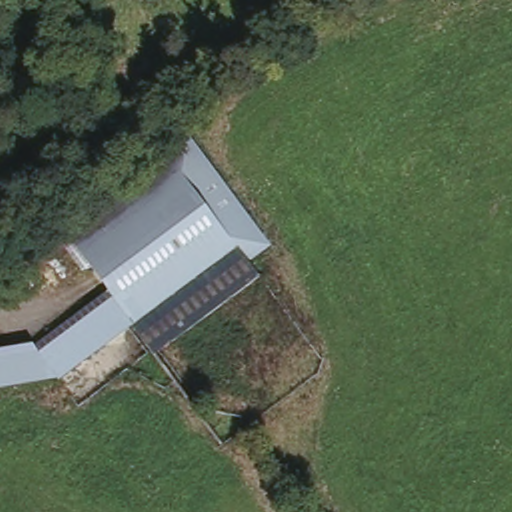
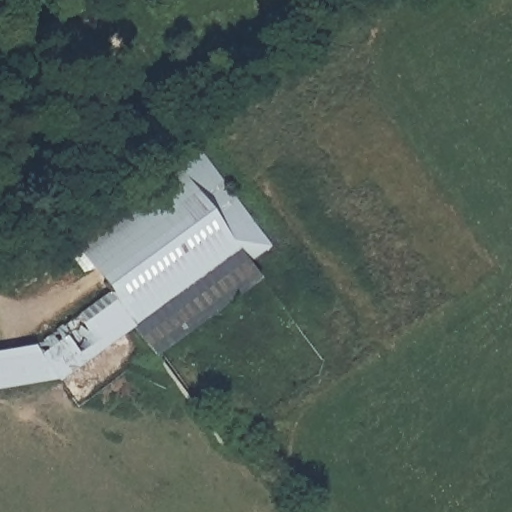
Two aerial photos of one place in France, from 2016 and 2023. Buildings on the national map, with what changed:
unchanged [(57,376),(0,386),(0,345),(34,340),(38,351),(114,295),(66,235),(188,134),(269,241),(249,257),(235,247),(142,315),(57,376)]

